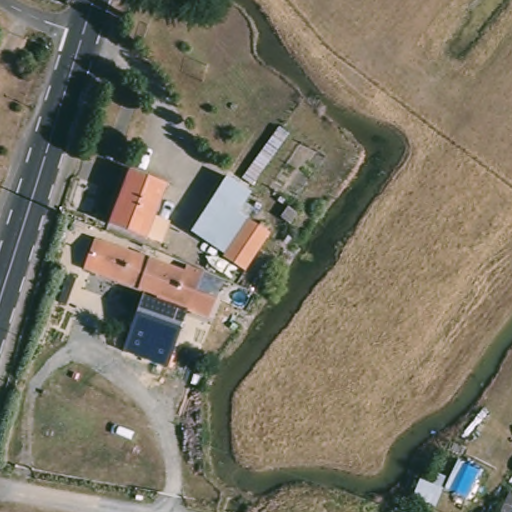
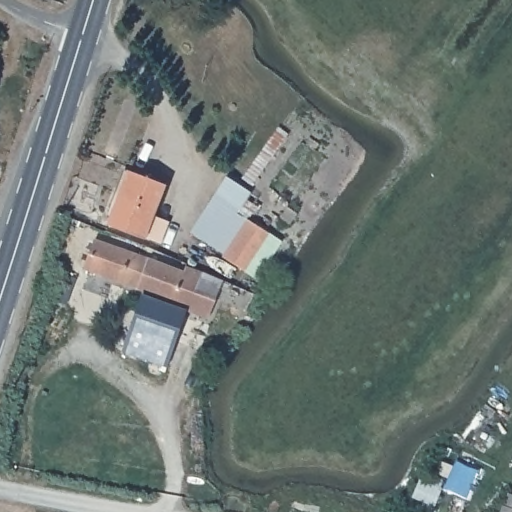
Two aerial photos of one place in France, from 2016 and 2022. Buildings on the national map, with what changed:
unchanged [(167,186),(148,240),(110,227),(131,172),(167,186)]
unchanged [(248,269),(194,235),(229,179),(256,194),(243,216),(252,220),(248,229),(268,244),(248,269)]
unchanged [(153,295),(76,270),(88,237),(180,268),(182,262),(199,270),(191,290),(211,297),(203,320),(182,313),(161,364),(123,352),(141,300),(151,302),(153,295)]

